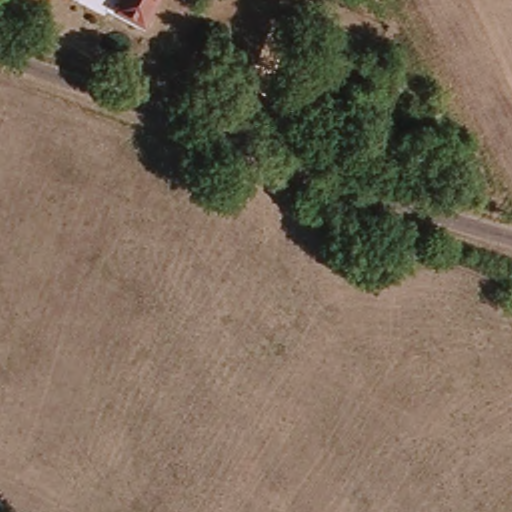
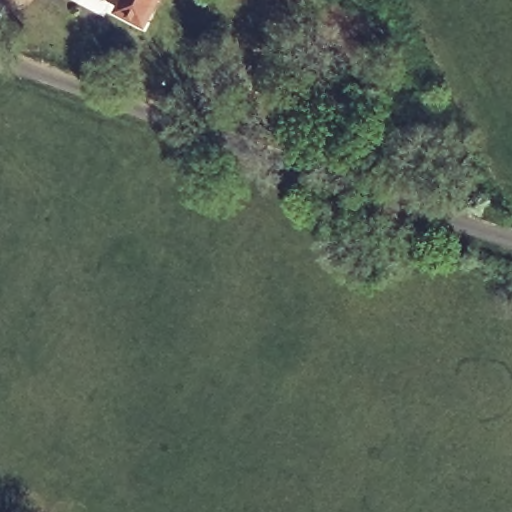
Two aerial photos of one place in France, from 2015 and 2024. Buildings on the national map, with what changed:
unchanged [(120,6),(123,0),(158,0),(147,21),(120,6)]

